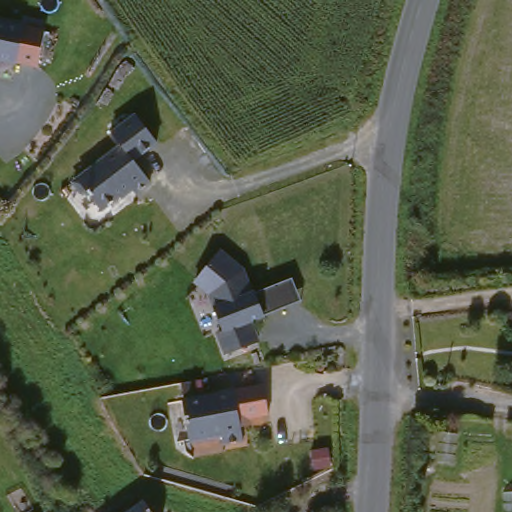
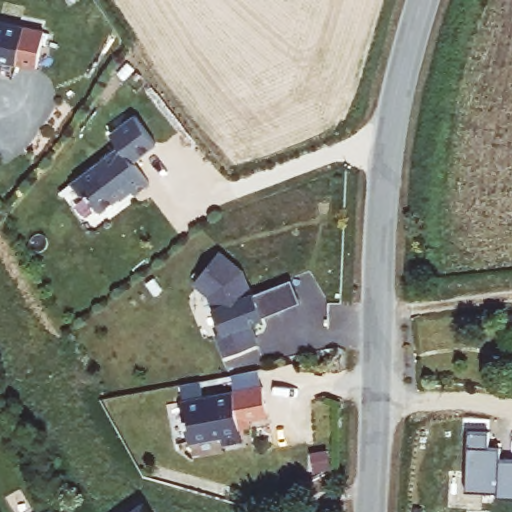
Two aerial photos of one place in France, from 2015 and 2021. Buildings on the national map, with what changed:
unchanged [(38,40),(30,74),(9,69),(9,70),(0,68),(0,30),(38,40)]
unchanged [(141,114),(163,141),(138,160),(156,182),(140,194),(136,187),(105,211),(93,195),(86,194),(78,183),(126,145),(116,132),(141,114)]
unchanged [(227,248),(253,268),(260,288),(298,275),(307,300),(260,319),(267,341),(222,358),(194,280),(227,248)]
unchanged [(181,406),(178,390),(198,385),(201,402),(261,390),(266,418),(244,422),(238,429),(242,446),(221,450),(219,440),(188,447),(179,407),(181,406)]
new [(486,445),(499,445),(498,457),(512,458),(512,498),(498,498),(498,491),(465,490),(467,430),(486,430),(486,445)]
unchanged [(143,511),(143,512),(142,512),(143,511)]

